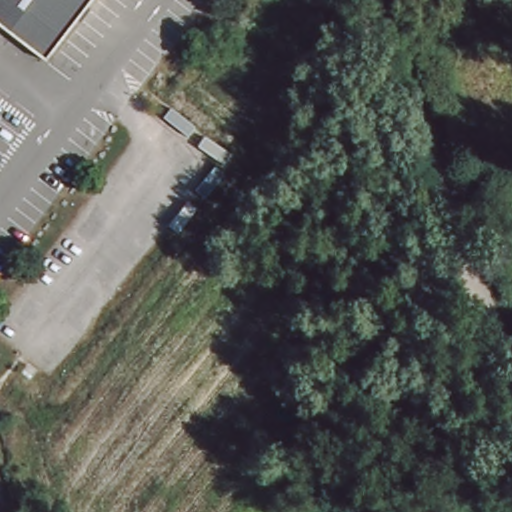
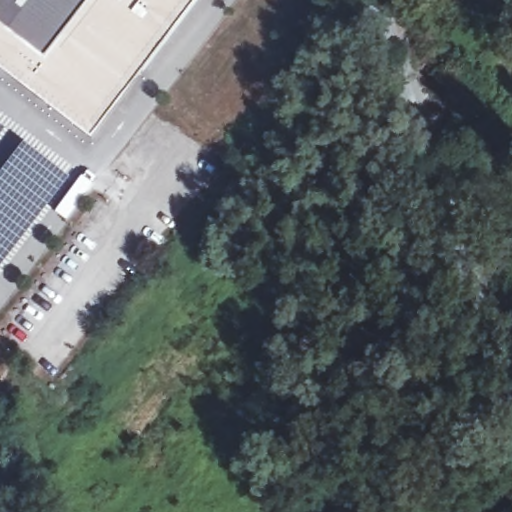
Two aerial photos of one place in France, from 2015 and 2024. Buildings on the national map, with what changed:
unchanged [(46,59),(0,26),(0,0),(90,0),(46,59)]
new [(92,137),(0,67),(0,26),(46,59),(90,0),(197,0),(92,137)]

